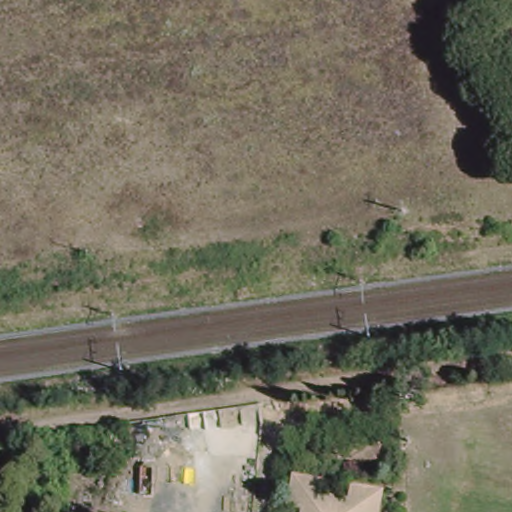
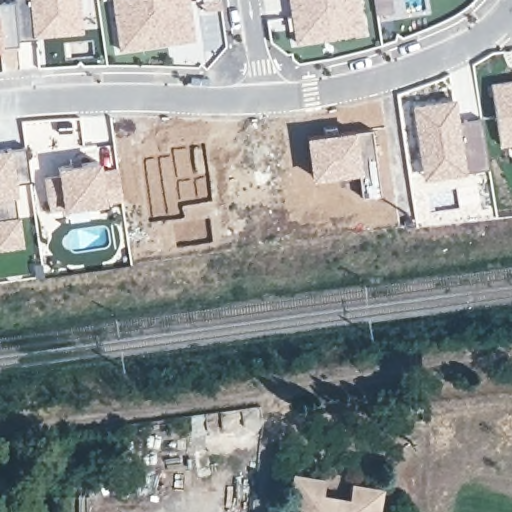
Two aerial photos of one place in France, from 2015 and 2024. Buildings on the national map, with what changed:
new [(10,0),(29,0),(32,36),(32,37),(18,39),(18,44),(1,45),(0,34),(0,1),(10,0)]
new [(83,32),(32,37),(28,0),(80,0),(83,32)]
new [(113,0),(188,0),(194,39),(120,50),(113,0)]
new [(367,32),(295,41),(288,0),(361,0),(367,32)]
new [(1,49),(0,49),(0,33),(1,49)]
new [(512,143),(498,145),(490,82),(512,79),(512,143)]
new [(455,97),(460,120),(467,170),(421,179),(410,104),(455,97)]
new [(480,117),(487,165),(467,170),(460,120),(480,117)]
new [(337,129),(371,128),(375,155),(378,195),(359,196),(356,172),(310,178),(303,134),(337,129)]
new [(0,247),(0,146),(10,145),(15,193),(13,194),(17,214),(22,245),(0,247)]
new [(55,165),(102,159),(104,165),(117,164),(122,198),(86,205),(60,207),(59,205),(47,206),(41,175),(55,173),(55,165)]
unchanged [(294,504),(298,472),(330,477),(327,490),(353,495),(356,480),(388,485),(385,512),(307,512),(308,506),(294,504)]

